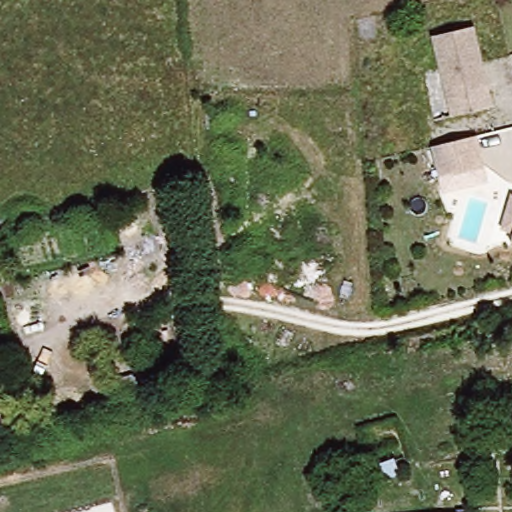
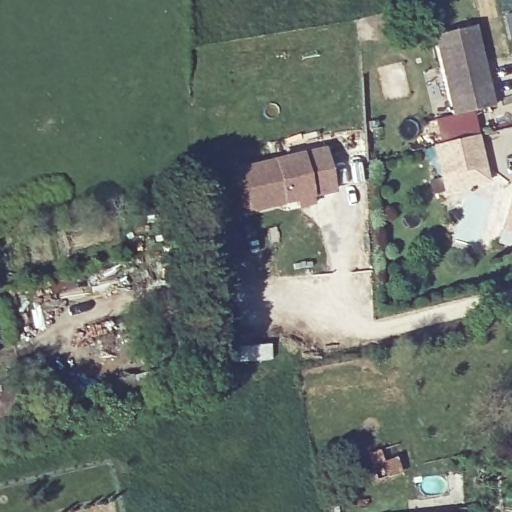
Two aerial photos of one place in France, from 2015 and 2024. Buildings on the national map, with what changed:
unchanged [(475,25),(495,106),(452,116),(432,36),(475,25)]
unchanged [(483,168),(440,180),(430,147),(474,135),(483,168)]
new [(324,150),(333,190),(243,212),(234,171),(324,150)]
unchanged [(511,193),(512,193),(512,231),(500,228),(511,193)]
unchanged [(100,382),(159,367),(163,389),(106,404),(100,382)]
unchanged [(0,417),(2,428),(0,428),(0,417)]

